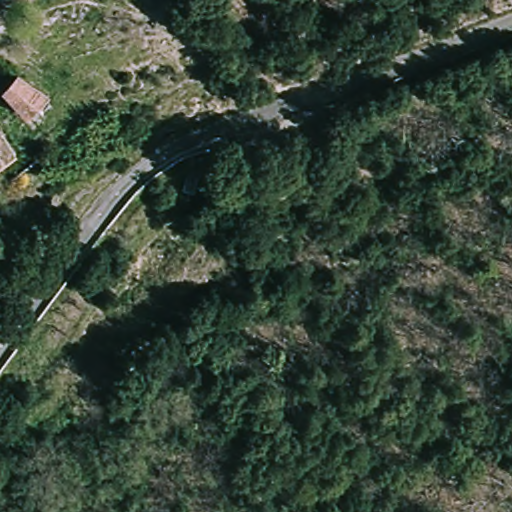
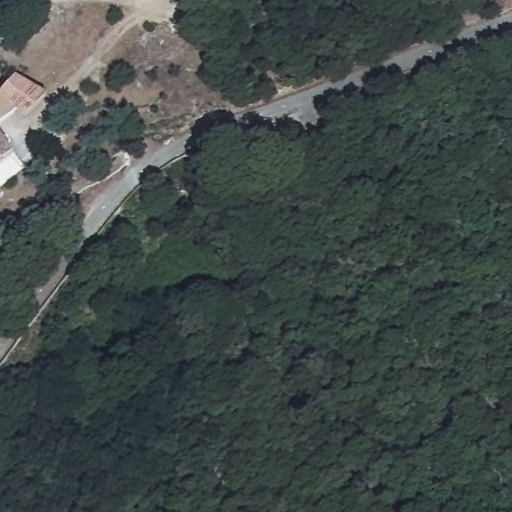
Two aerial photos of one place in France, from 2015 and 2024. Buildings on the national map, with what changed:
unchanged [(14,96),(0,88),(0,79),(6,74),(23,84),(26,87),(27,87),(53,105),(38,127),(7,106),(14,96)]
unchanged [(0,164),(0,127),(17,150),(0,164)]

